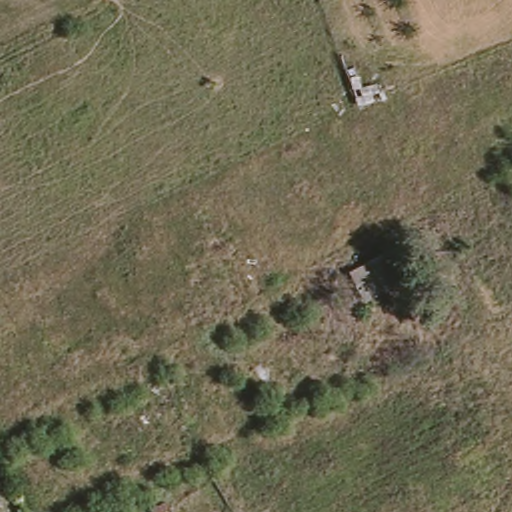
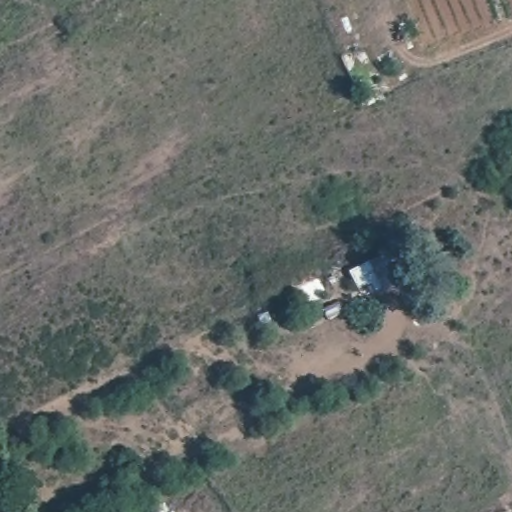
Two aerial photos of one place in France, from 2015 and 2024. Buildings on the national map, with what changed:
unchanged [(410,286),(375,300),(372,291),(348,300),(339,276),(398,253),(410,286)]

